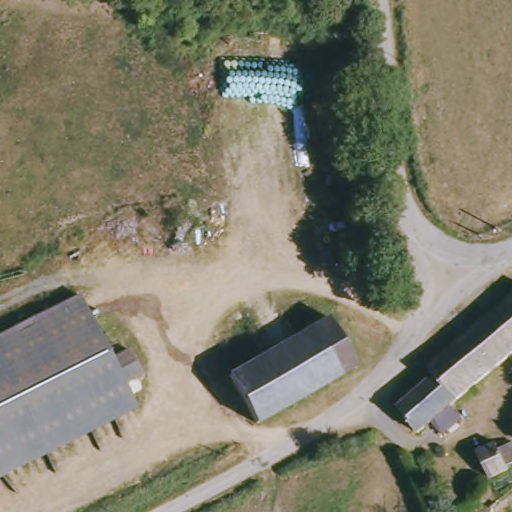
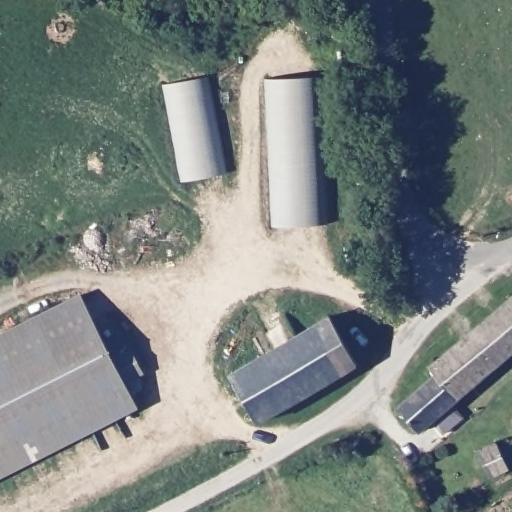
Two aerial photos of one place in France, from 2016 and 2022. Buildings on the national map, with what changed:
new [(184,181),(164,84),(210,76),(228,172),(184,181)]
new [(276,226),(269,79),(321,77),(328,223),(276,226)]
unchanged [(117,354),(134,346),(145,369),(128,377),(138,401),(0,469),(0,336),(88,293),(117,354)]
unchanged [(427,435),(406,408),(442,379),(434,368),(512,304),(512,362),(427,435)]
unchanged [(367,367),(262,423),(236,375),(339,318),(367,367)]
unchanged [(501,485),(488,457),(507,448),(511,456),(512,455),(512,480),(501,485)]

